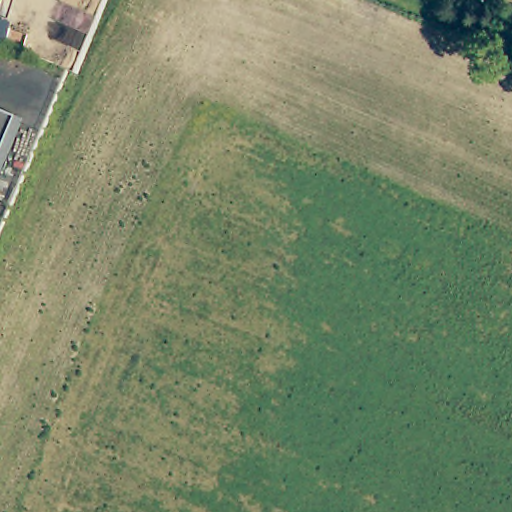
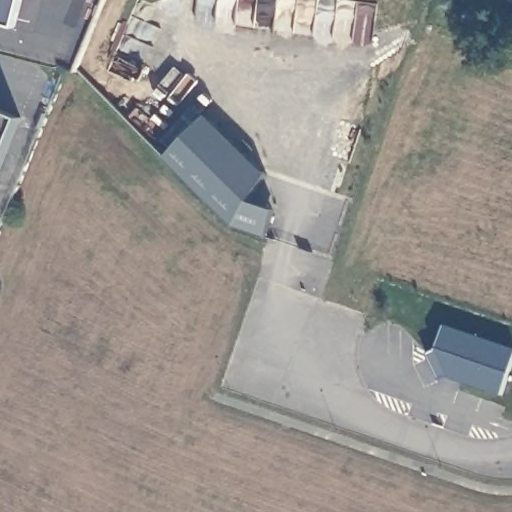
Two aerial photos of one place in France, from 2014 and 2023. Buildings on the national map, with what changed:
unchanged [(0,173),(0,108),(23,117),(0,173)]
new [(249,200),(277,210),(267,237),(230,225),(164,157),(206,115),(267,174),(249,200)]
new [(502,394),(448,376),(441,379),(428,352),(437,347),(445,324),(512,346),(512,367),(502,394)]

